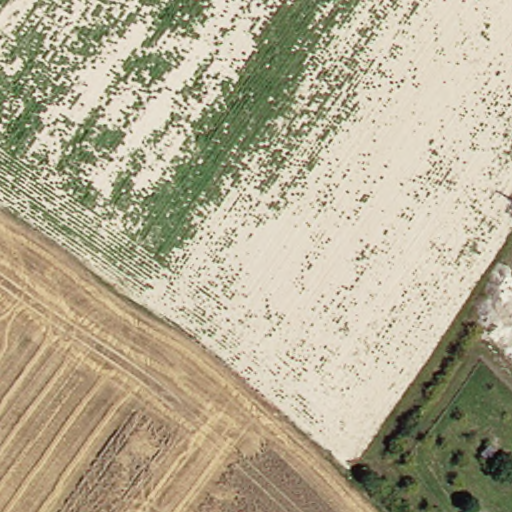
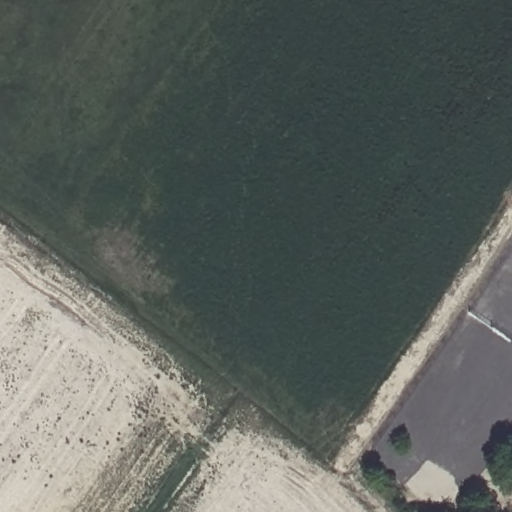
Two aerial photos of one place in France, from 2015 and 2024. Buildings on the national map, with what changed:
[]

